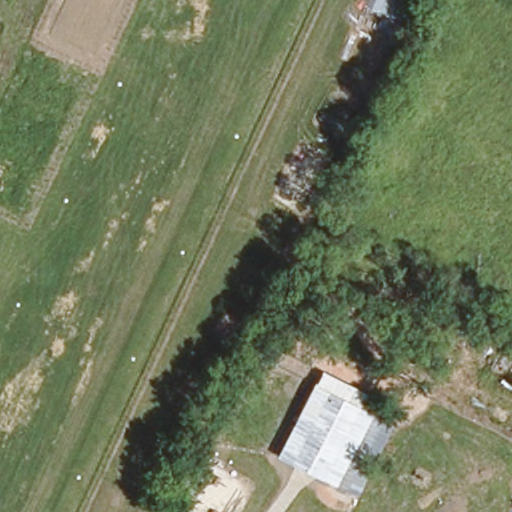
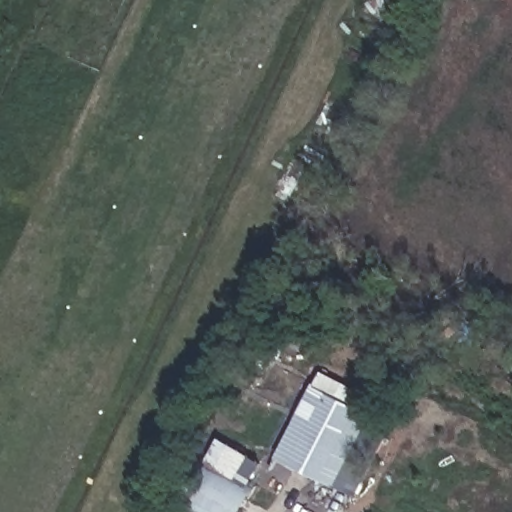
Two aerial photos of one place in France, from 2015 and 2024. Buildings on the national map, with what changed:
unchanged [(278,457),(322,369),(378,397),(371,412),(395,424),(360,496),(278,457)]
new [(212,475),(201,469),(219,438),(263,463),(250,488),(254,491),(242,512),(214,512),(197,502),(212,475)]

